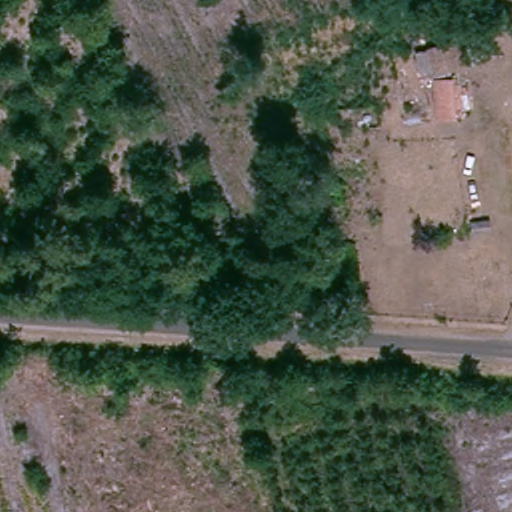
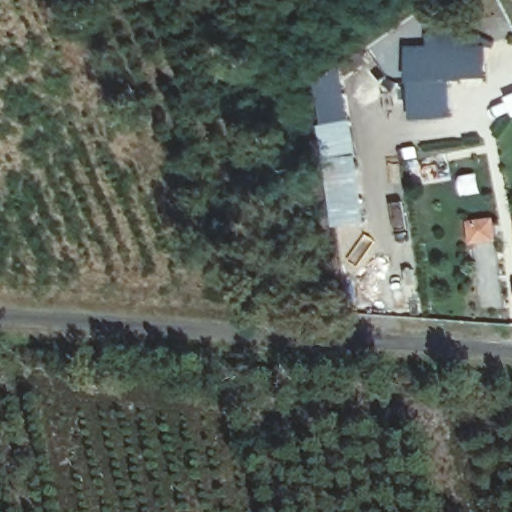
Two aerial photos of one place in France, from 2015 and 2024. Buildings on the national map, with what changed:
new [(410,120),(406,46),(428,45),(428,35),(485,32),(487,78),(451,82),(452,117),(410,120)]
new [(357,159),(329,162),(315,81),(340,68),(357,159)]

